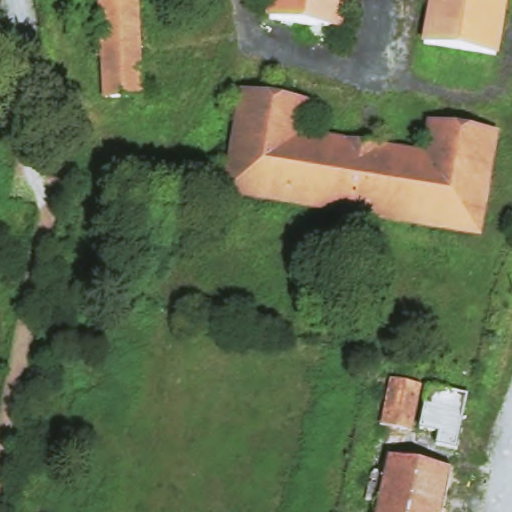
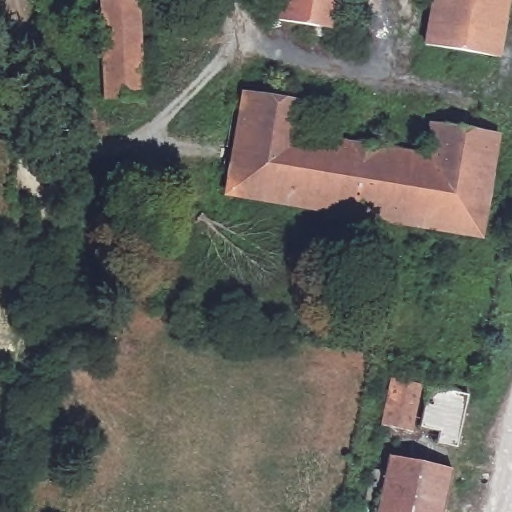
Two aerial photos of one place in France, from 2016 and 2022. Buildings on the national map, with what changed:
unchanged [(101,97),(95,0),(139,0),(144,96),(101,97)]
unchanged [(270,24),(275,0),(353,0),(347,37),(270,24)]
unchanged [(424,46),(432,0),(510,0),(500,59),(424,46)]
unchanged [(394,151),(425,156),(430,125),(502,137),(484,242),(225,197),(242,94),(317,106),(311,137),(394,151)]
unchanged [(459,448),(438,444),(440,432),(422,428),(420,438),(380,429),(391,381),(435,391),(470,398),(459,448)]
unchanged [(390,458),(452,472),(444,512),(378,512),(390,458)]

